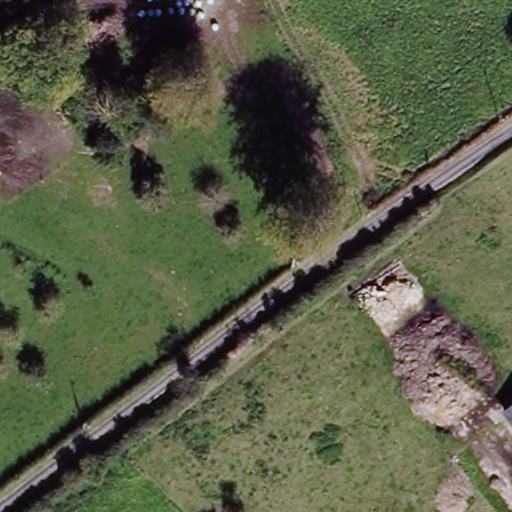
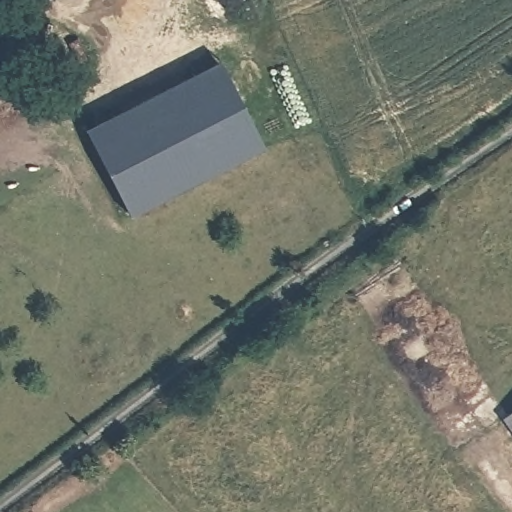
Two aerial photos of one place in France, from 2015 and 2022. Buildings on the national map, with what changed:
new [(222,66),(265,146),(132,214),(87,133),(222,66)]
unchanged [(512,408),(512,416),(508,411),(512,408)]

